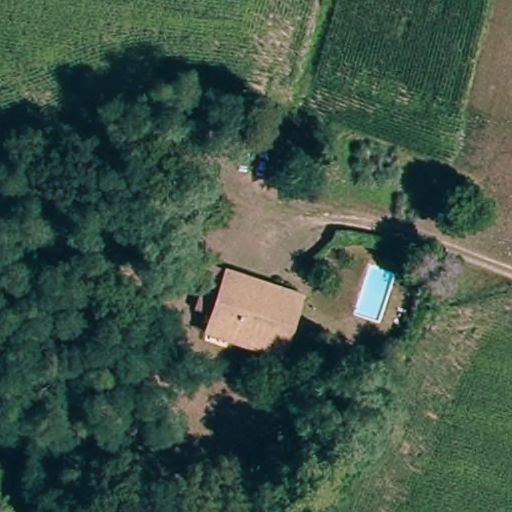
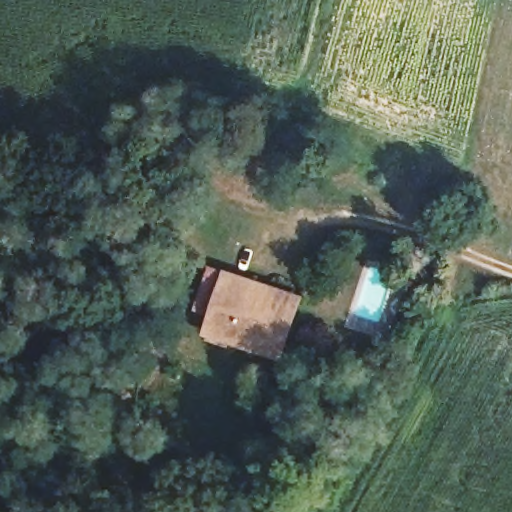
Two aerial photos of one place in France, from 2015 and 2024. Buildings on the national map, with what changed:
unchanged [(157,195),(135,191),(146,154),(167,160),(157,195)]
unchanged [(220,320),(202,314),(215,272),(234,278),(300,300),(285,355),(245,342),(215,333),(220,320)]

